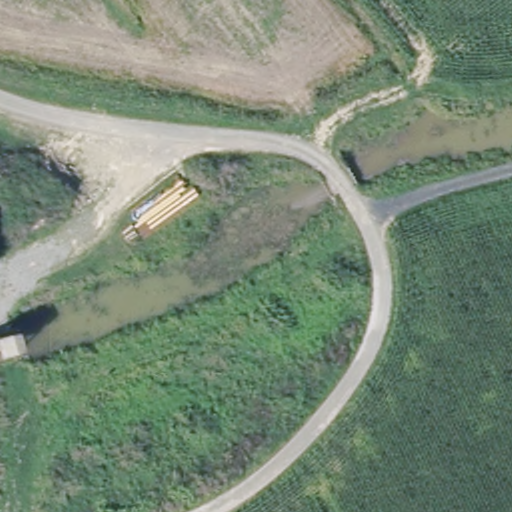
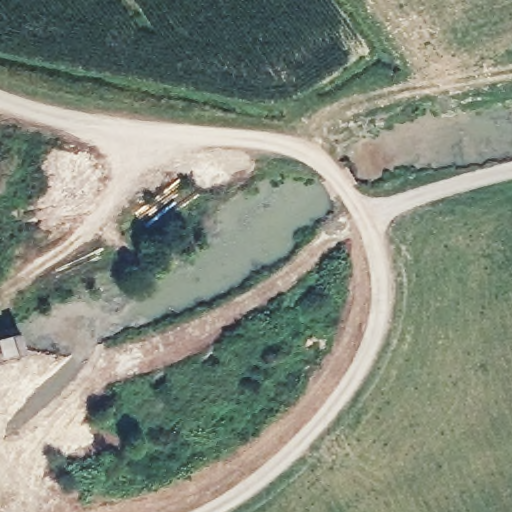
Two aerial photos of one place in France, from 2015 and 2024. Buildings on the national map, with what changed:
unchanged [(20,323),(26,346),(9,349),(1,329),(20,323)]

